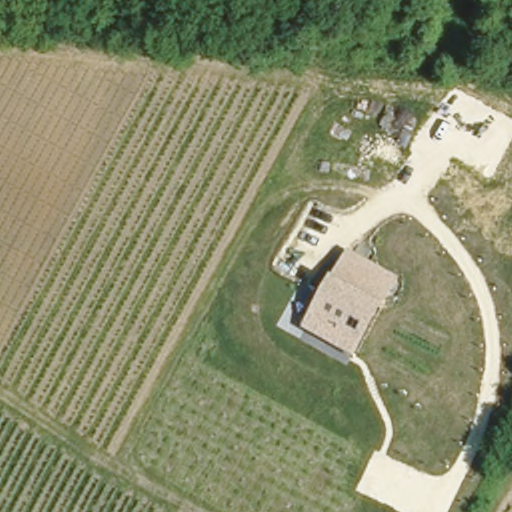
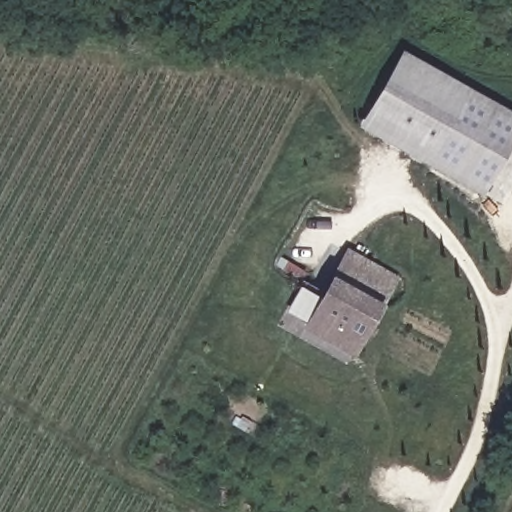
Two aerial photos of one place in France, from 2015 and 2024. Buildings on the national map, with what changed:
new [(358,125),(400,49),(512,111),(512,143),(483,195),(358,125)]
unchanged [(306,330),(349,250),(399,276),(356,356),(306,330)]

